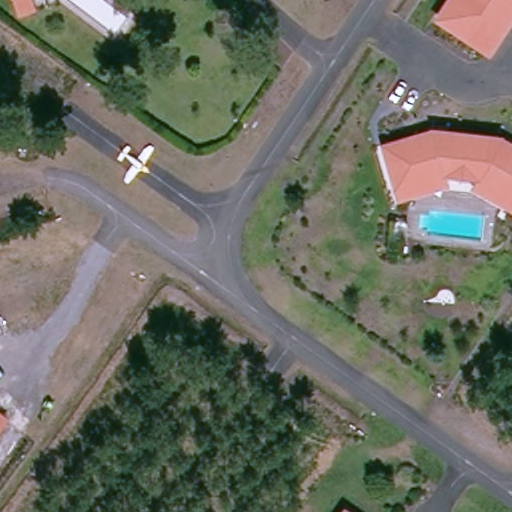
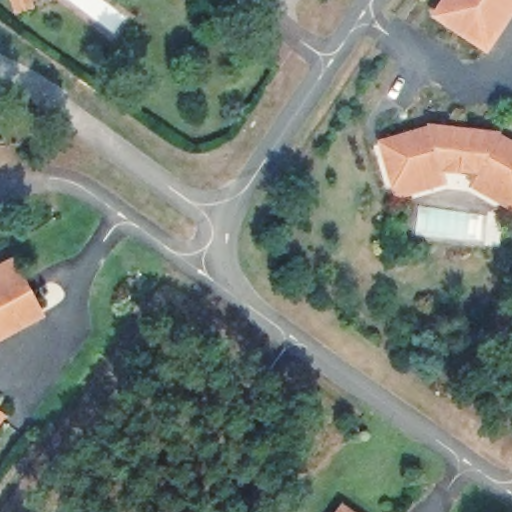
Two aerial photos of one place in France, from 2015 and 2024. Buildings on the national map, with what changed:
new [(15,15),(10,0),(32,0),(35,8),(15,15)]
unchanged [(512,0),(512,10),(488,44),(439,10),(446,0),(512,0)]
unchanged [(479,178),(477,176),(448,171),(446,171),(448,182),(399,194),(396,183),(386,140),(438,128),(501,137),(512,143),(512,204),(475,188),(479,178)]
new [(15,265),(41,314),(0,338),(0,273),(15,265)]
unchanged [(7,416),(0,427),(0,411),(7,416)]
unchanged [(337,500),(352,512),(328,512),(337,500)]

